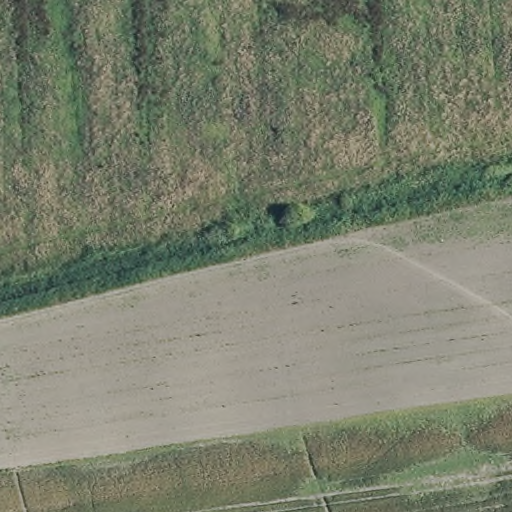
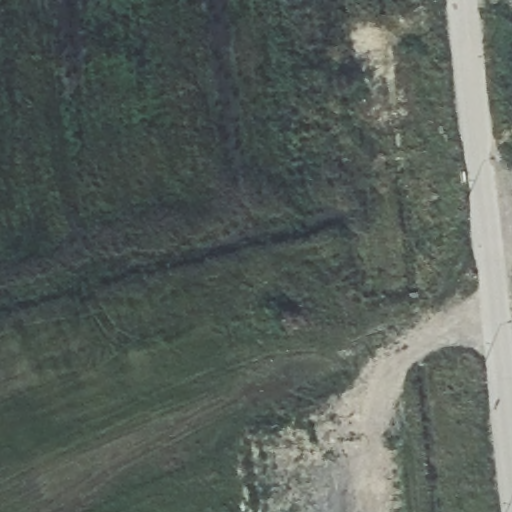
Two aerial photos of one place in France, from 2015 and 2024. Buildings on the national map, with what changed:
[]

